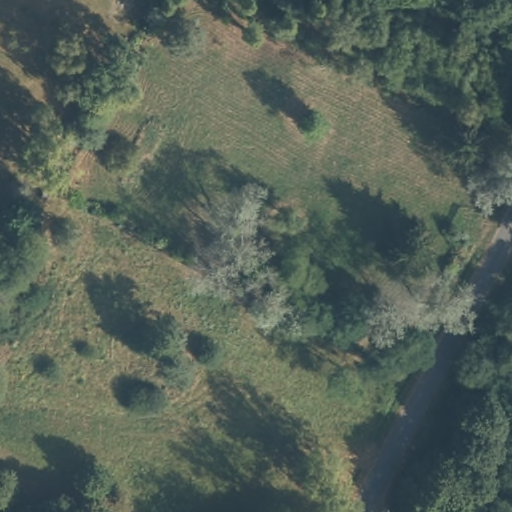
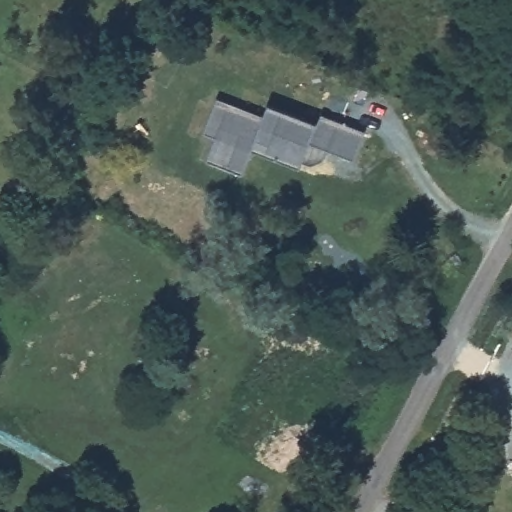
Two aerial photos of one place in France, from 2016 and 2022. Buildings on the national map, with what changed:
new [(215,137),(202,132),(215,97),(263,115),(267,102),(315,121),(320,114),(363,130),(352,160),(326,150),(323,158),(309,165),(300,162),(298,167),(248,149),(240,175),(204,162),(215,137)]

